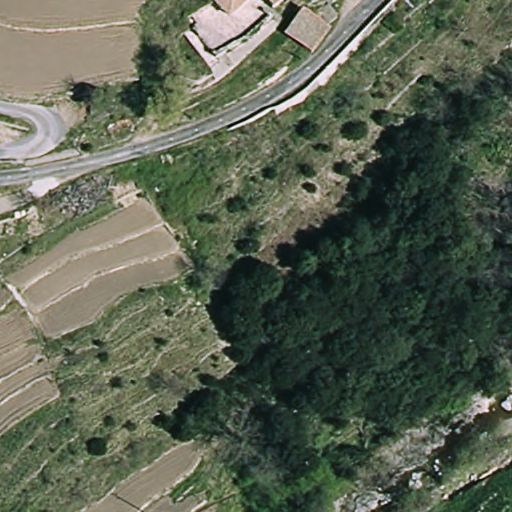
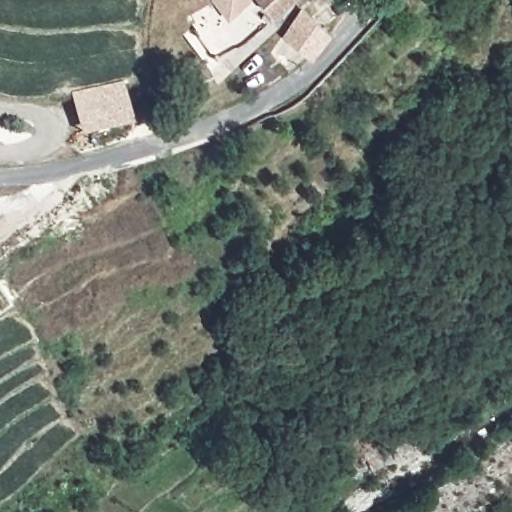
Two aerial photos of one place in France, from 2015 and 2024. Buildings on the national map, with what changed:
unchanged [(234,20),(219,0),(255,0),(234,20)]
unchanged [(267,0),(290,0),(280,10),(267,0)]
unchanged [(329,31),(333,35),(313,57),(286,36),(309,10),(316,19),(330,7),(332,10),(342,20),(329,31)]
new [(69,90),(121,78),(130,117),(79,130),(69,90)]

